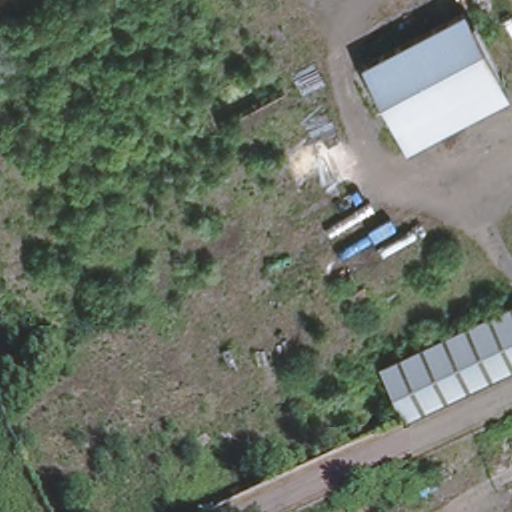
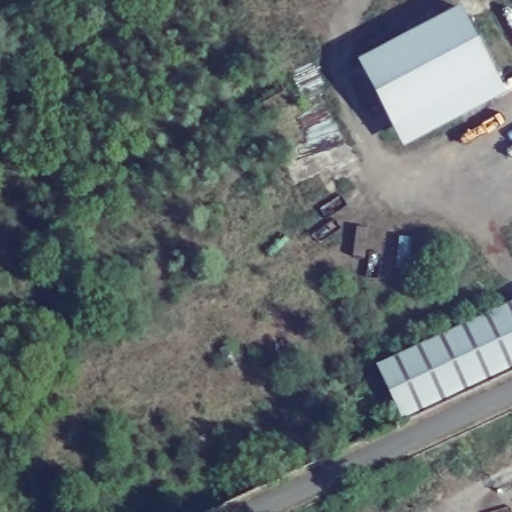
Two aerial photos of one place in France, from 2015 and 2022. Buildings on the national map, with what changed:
unchanged [(400,139),(364,71),(465,19),(471,30),(502,85),(400,139)]
unchanged [(378,361),(512,299),(512,358),(402,410),(378,361)]

